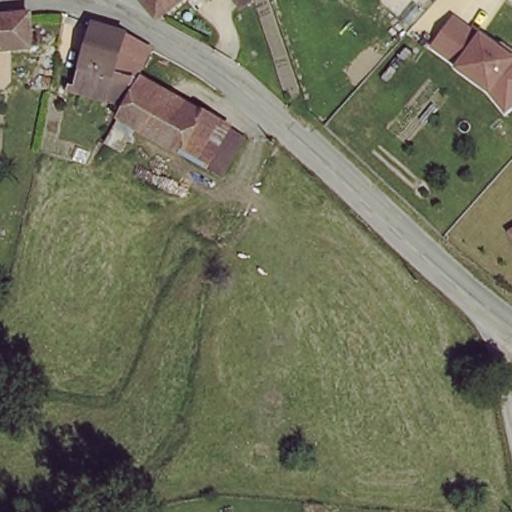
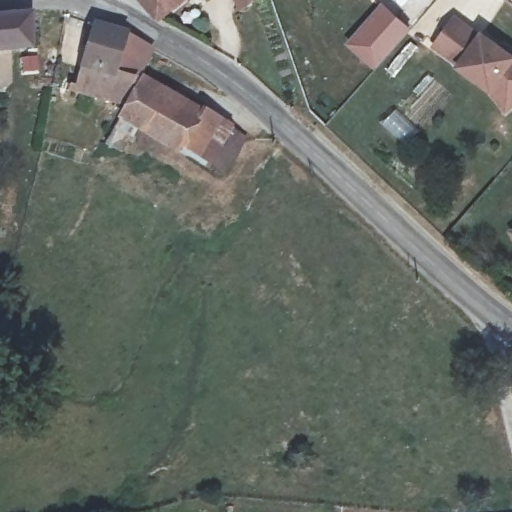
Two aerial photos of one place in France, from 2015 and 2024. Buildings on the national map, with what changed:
unchanged [(153,7),(147,0),(184,0),(162,17),(153,7)]
unchanged [(254,1),(243,9),(236,0),(254,0),(254,1)]
new [(348,44),(381,4),(410,30),(375,69),(348,44)]
unchanged [(490,90),(428,44),(448,8),(512,42),(512,105),(504,111),(490,90)]
unchanged [(31,13),(35,43),(0,47),(0,18),(31,13)]
unchanged [(138,38),(153,48),(124,101),(88,76),(98,20),(105,23),(127,33),(138,38)]
unchanged [(224,131),(204,169),(152,137),(140,158),(111,139),(136,101),(145,81),(224,131)]
unchanged [(512,222),(512,238),(506,227),(512,222)]

